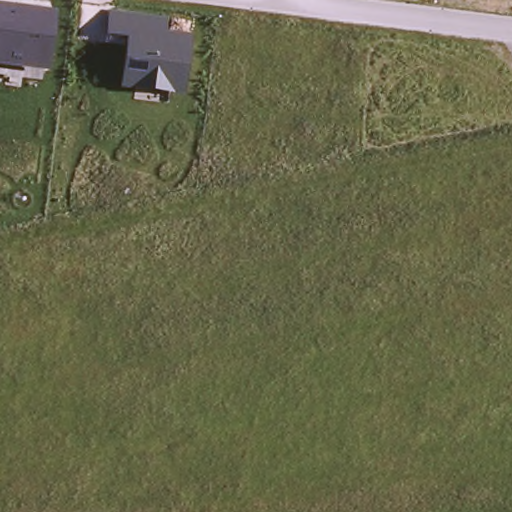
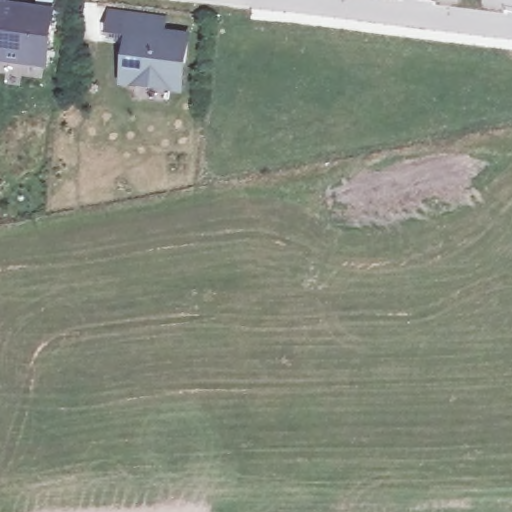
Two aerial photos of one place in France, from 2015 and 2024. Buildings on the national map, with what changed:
unchanged [(0,3),(55,11),(49,70),(0,65),(0,3)]
unchanged [(166,18),(164,33),(192,36),(187,91),(125,85),(131,40),(106,38),(109,11),(166,18)]

